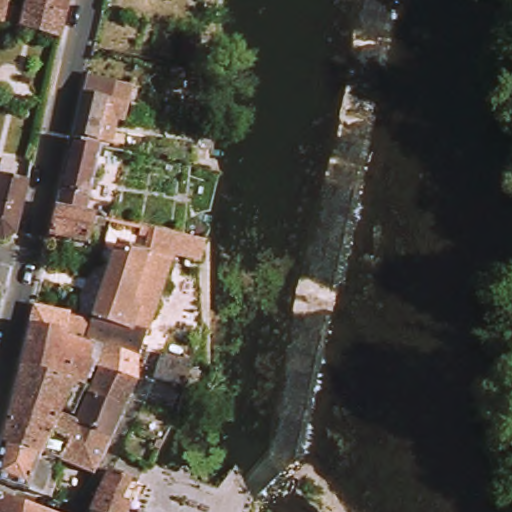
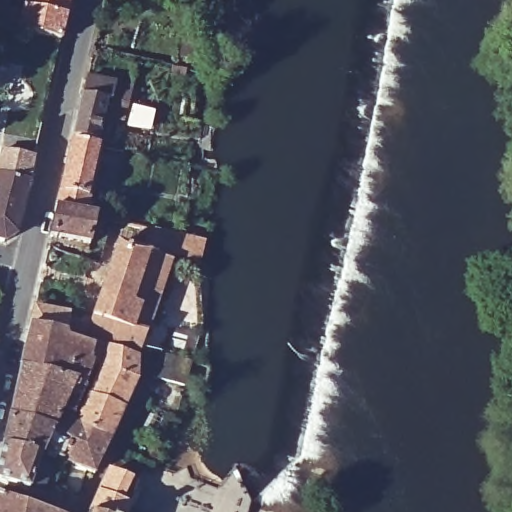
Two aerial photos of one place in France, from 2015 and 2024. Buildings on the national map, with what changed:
unchanged [(69,44),(0,26),(0,0),(12,0),(11,11),(32,16),(35,0),(79,0),(69,44)]
unchanged [(79,135),(89,92),(92,75),(122,83),(118,99),(114,98),(104,140),(79,135)]
unchanged [(91,214),(62,208),(77,141),(107,147),(91,214)]
unchanged [(0,238),(0,199),(2,199),(7,176),(38,183),(25,237),(14,241),(0,238)]
unchanged [(91,214),(111,219),(110,227),(100,225),(95,246),(56,236),(62,208),(91,214)]
unchanged [(157,229),(194,237),(186,259),(179,256),(165,298),(151,335),(142,359),(107,347),(90,341),(125,249),(151,256),(157,229)]
unchanged [(95,348),(90,362),(93,363),(84,387),(25,369),(36,323),(40,306),(75,316),(69,334),(67,338),(95,348)]
unchanged [(105,371),(99,367),(107,347),(142,359),(142,380),(140,386),(116,442),(82,424),(96,392),(105,371)]
unchanged [(192,364),(188,376),(156,366),(159,354),(192,364)]
unchanged [(74,416),(65,413),(62,415),(56,429),(14,416),(25,369),(84,387),(87,388),(74,416)]
unchanged [(56,429),(62,415),(82,424),(65,464),(46,457),(8,445),(14,416),(56,429)]
unchanged [(65,464),(82,424),(116,442),(107,461),(99,476),(71,466),(65,464)]
unchanged [(152,447),(156,441),(162,443),(159,451),(152,447)]
unchanged [(0,478),(8,445),(46,457),(42,466),(64,474),(56,497),(35,489),(0,478)]
unchanged [(116,471),(145,483),(135,505),(135,507),(133,512),(96,512),(105,494),(116,471)]
unchanged [(3,496),(40,511),(39,512),(0,512),(0,506),(3,496)]
unchanged [(39,512),(40,511),(42,512),(39,512)]

